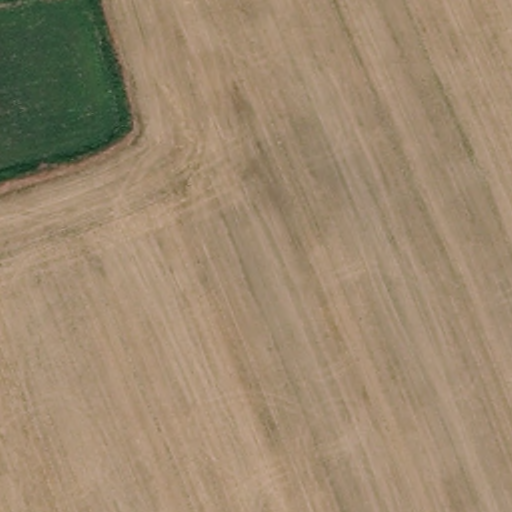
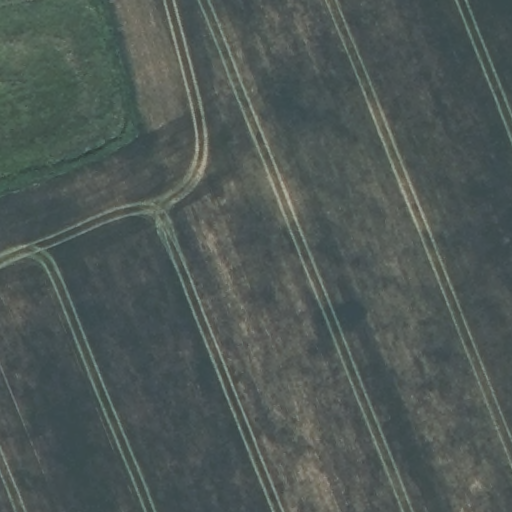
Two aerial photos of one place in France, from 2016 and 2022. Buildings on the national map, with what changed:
[]

